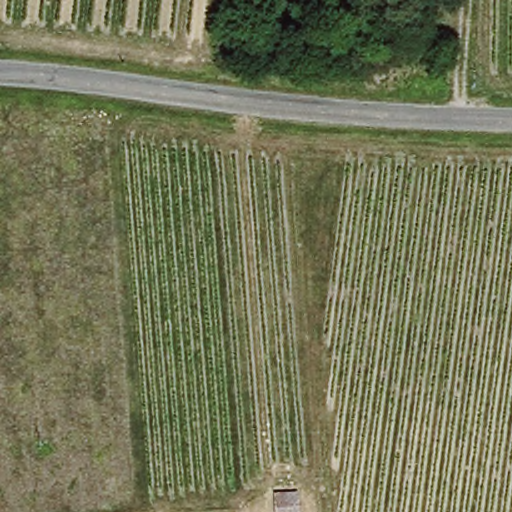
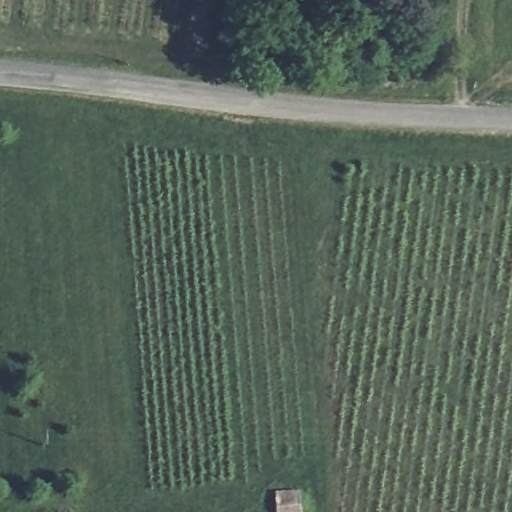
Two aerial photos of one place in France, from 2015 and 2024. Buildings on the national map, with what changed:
unchanged [(275,502),(296,504),(296,512),(275,512),(275,502)]

